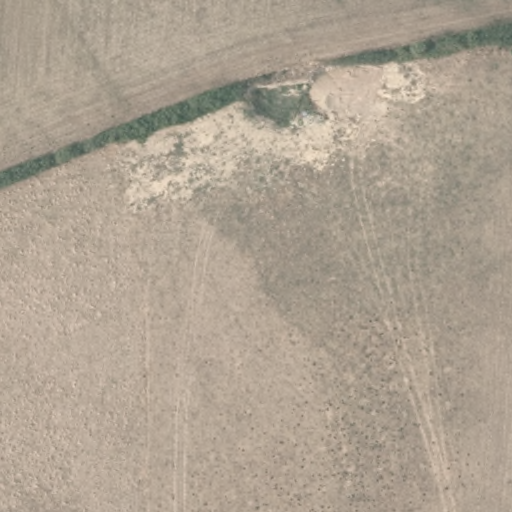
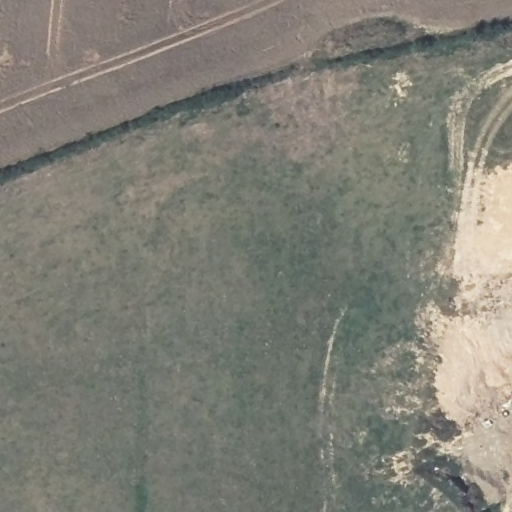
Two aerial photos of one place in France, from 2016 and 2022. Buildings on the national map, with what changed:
[]

